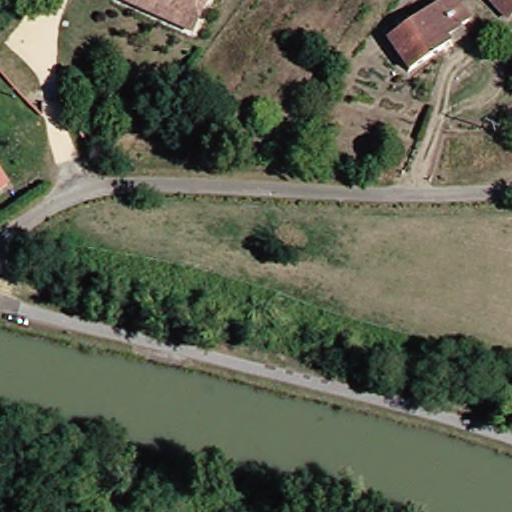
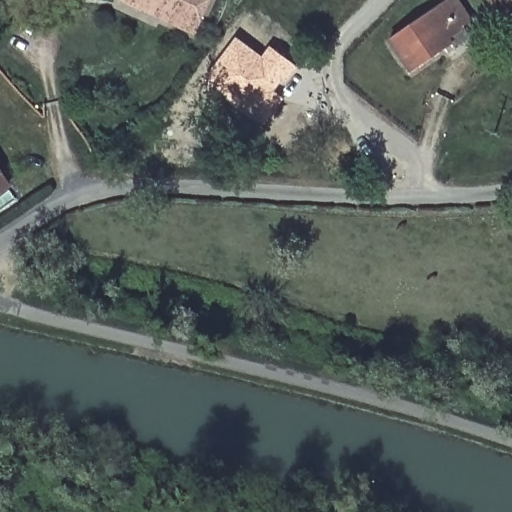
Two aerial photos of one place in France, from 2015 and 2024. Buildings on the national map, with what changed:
unchanged [(122,0),(209,0),(194,34),(160,19),(121,1),(122,0)]
unchanged [(469,20),(460,26),(462,29),(447,39),(451,44),(410,71),(390,40),(451,0),(456,0),(469,20)]
unchanged [(508,19),(489,0),(512,0),(512,15),(508,19)]
new [(286,82),(281,79),(274,92),(284,98),(262,127),(204,82),(236,37),(262,57),(270,47),(297,67),(286,82)]
unchanged [(0,193),(0,177),(7,189),(0,193)]
unchanged [(12,291),(8,290),(0,288),(0,272),(16,276),(12,291)]

